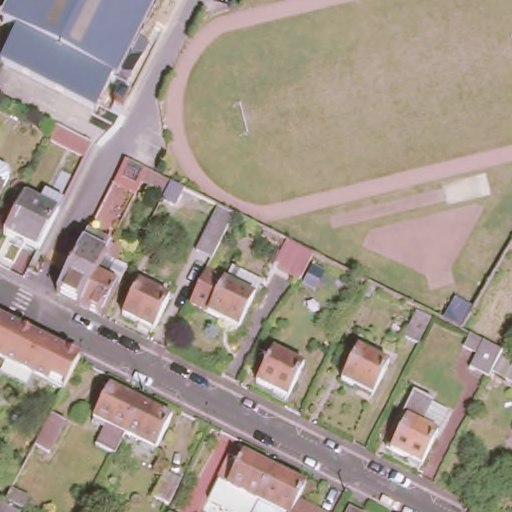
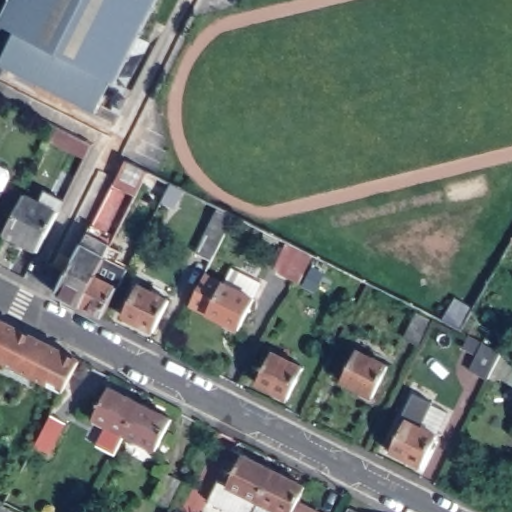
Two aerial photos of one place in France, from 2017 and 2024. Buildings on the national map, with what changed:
unchanged [(3,26),(0,25),(0,22),(1,20),(4,20),(14,0),(160,0),(159,4),(161,5),(159,9),(157,8),(147,28),(149,28),(147,33),(145,32),(134,54),(136,54),(134,59),(132,58),(121,81),(116,79),(100,111),(1,63),(17,31),(4,24),(3,26)]
unchanged [(92,144),(86,156),(52,139),(59,127),(92,144)]
unchanged [(149,172),(137,194),(115,183),(127,161),(149,172)]
unchanged [(163,200),(171,184),(183,189),(174,206),(163,200)]
unchanged [(2,188),(0,192),(0,187),(2,188)]
unchanged [(58,210),(37,250),(4,233),(24,194),(38,200),(44,189),(63,199),(58,210)]
unchanged [(217,206),(234,214),(212,259),(196,250),(217,206)]
unchanged [(57,294),(83,244),(89,233),(111,244),(110,245),(121,251),(116,262),(128,268),(118,285),(102,317),(79,305),(57,294)]
unchanged [(273,269),(287,240),(306,250),(311,253),(298,280),(292,278),(273,269)]
unchanged [(232,265),(261,281),(238,328),(190,304),(206,273),(224,281),(232,265)]
unchanged [(174,299),(157,330),(126,314),(142,283),(174,299)]
unchanged [(417,342),(403,334),(415,311),(429,319),(417,342)]
unchanged [(38,374),(21,366),(8,359),(0,356),(0,318),(9,323),(23,329),(36,336),(52,344),(68,352),(84,360),(68,389),(53,382),(38,374)]
unchanged [(487,367),(484,373),(465,364),(478,335),(497,346),(512,355),(512,365),(506,376),(487,367)]
unchanged [(372,396),(341,379),(358,349),(389,364),(372,396)]
unchanged [(272,351),(304,367),(287,398),(255,382),(272,351)]
unchanged [(111,424),(97,419),(113,386),(144,401),(129,433),(118,454),(100,445),(111,424)]
unchanged [(414,390),(449,409),(421,465),(386,447),(414,390)]
unchanged [(176,416),(160,449),(129,433),(144,401),(176,416)]
unchanged [(48,457),(34,450),(51,419),(64,425),(48,457)]
unchanged [(211,476),(220,480),(236,447),(269,464),(245,512),(234,512),(200,496),(211,476)]
unchanged [(300,479),(292,494),(313,504),(309,512),(245,512),(269,464),(300,479)]
unchanged [(168,509),(153,502),(166,478),(181,485),(168,509)]
unchanged [(2,504),(17,512),(0,512),(0,507),(2,504)]
unchanged [(349,507),(359,512),(346,512),(349,507)]

